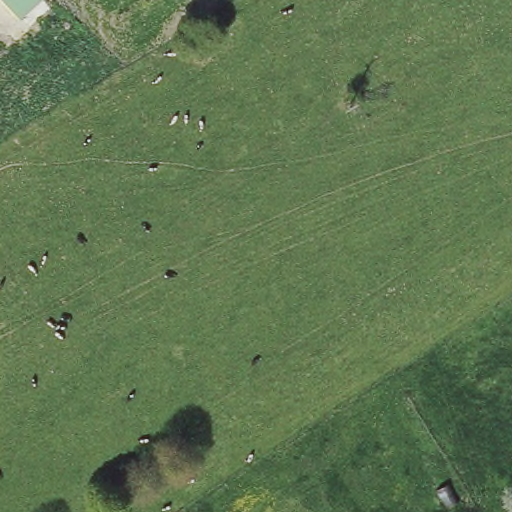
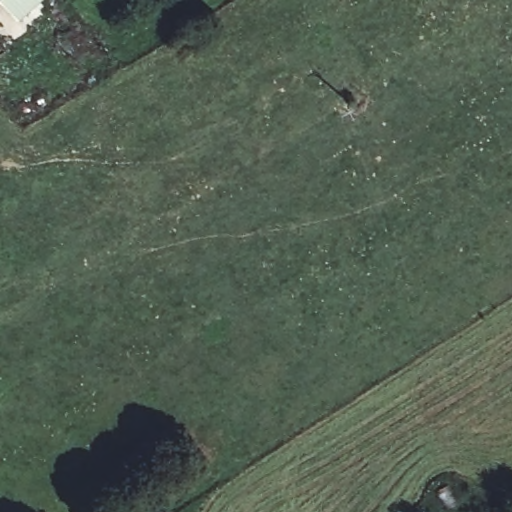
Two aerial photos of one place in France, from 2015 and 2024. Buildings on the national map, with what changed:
unchanged [(0,0),(40,0),(17,21),(0,1),(0,0)]

